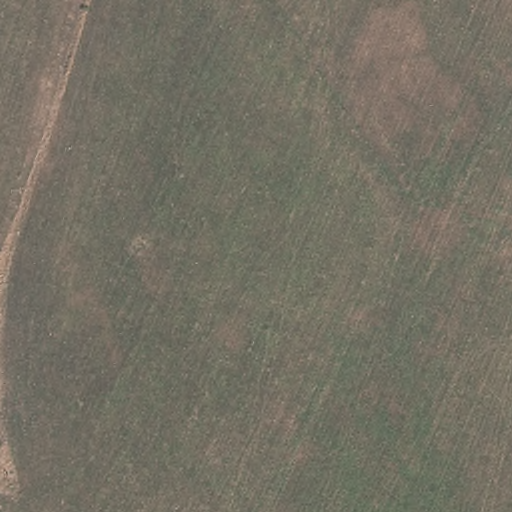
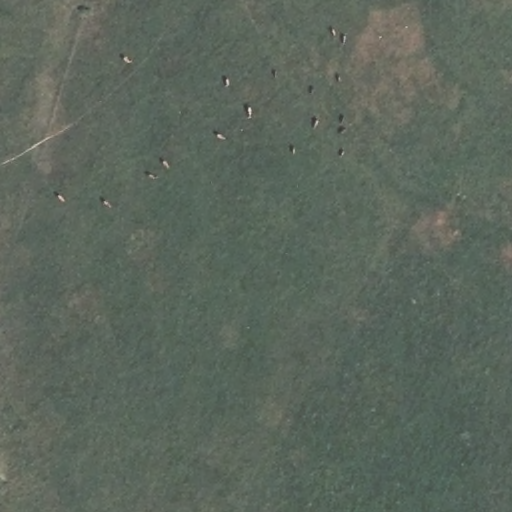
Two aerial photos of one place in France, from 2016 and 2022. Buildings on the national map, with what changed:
[]

